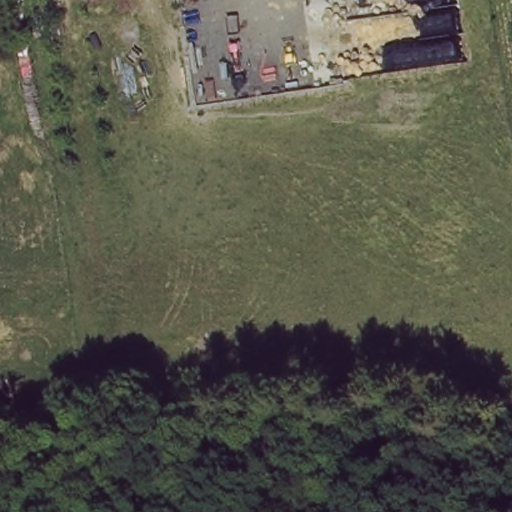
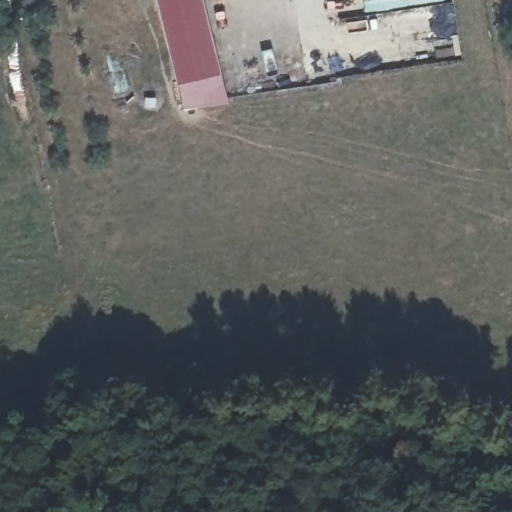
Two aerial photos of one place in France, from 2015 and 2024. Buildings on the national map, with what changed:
new [(176,84),(157,0),(203,0),(221,74),(176,84)]

